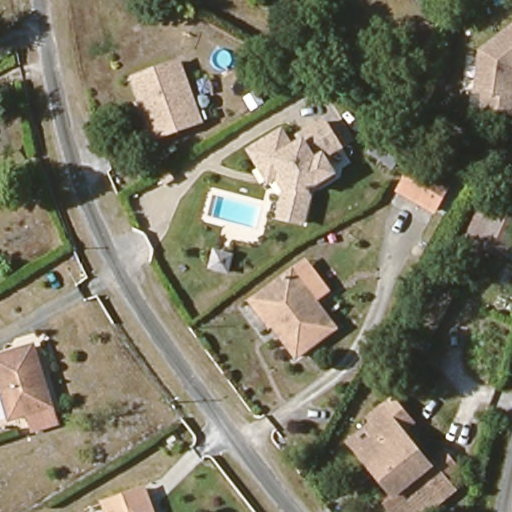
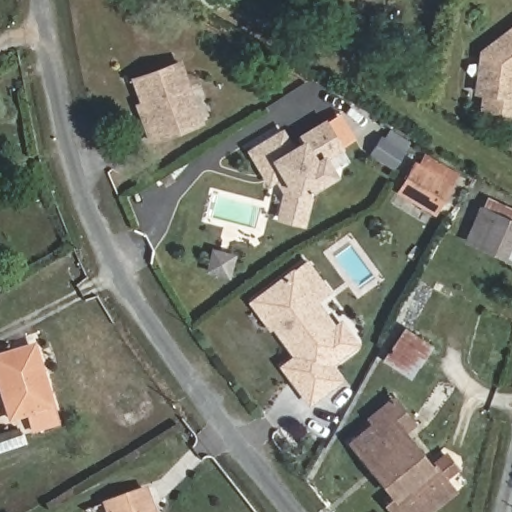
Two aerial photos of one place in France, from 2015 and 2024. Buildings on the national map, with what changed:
unchanged [(509,99),(512,99),(512,116),(478,112),(480,96),(472,95),(477,55),(512,28),(512,75),(510,76),(511,77),(509,99)]
unchanged [(145,102),(137,78),(182,64),(202,125),(151,141),(146,125),(140,104),(145,102)]
unchanged [(295,152),(305,146),(302,140),(327,125),(342,151),(326,161),(337,177),(328,182),(327,187),(320,191),(315,190),(308,195),(312,201),(306,227),(282,221),(288,195),(280,182),(272,186),(252,155),(257,152),(284,135),(295,152)]
unchanged [(414,166),(420,155),(455,176),(448,187),(433,212),(398,192),(414,166)]
unchanged [(502,259),(464,240),(480,207),(512,224),(512,239),(502,259)]
unchanged [(293,270),(295,273),(306,264),(329,292),(318,301),(336,323),(339,327),(301,357),(297,353),(255,301),(293,270)]
new [(297,353),(301,357),(339,327),(336,323),(342,319),(361,345),(332,365),(344,380),(308,406),(280,366),(297,353)]
new [(409,379),(382,358),(407,327),(433,348),(409,379)]
unchanged [(60,422),(36,430),(32,415),(14,420),(0,373),(0,358),(39,347),(60,422)]
unchanged [(372,425),(365,416),(388,398),(412,428),(405,435),(428,465),(440,456),(450,467),(437,477),(446,488),(417,512),(392,512),(397,508),(388,496),(369,471),(347,444),(372,425)]
unchanged [(148,491),(155,512),(110,512),(108,505),(148,491)]

